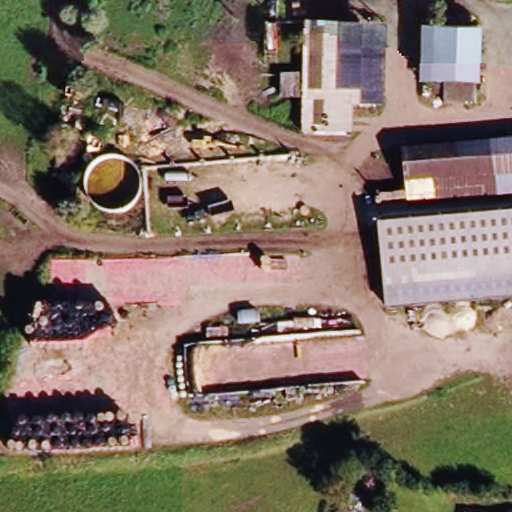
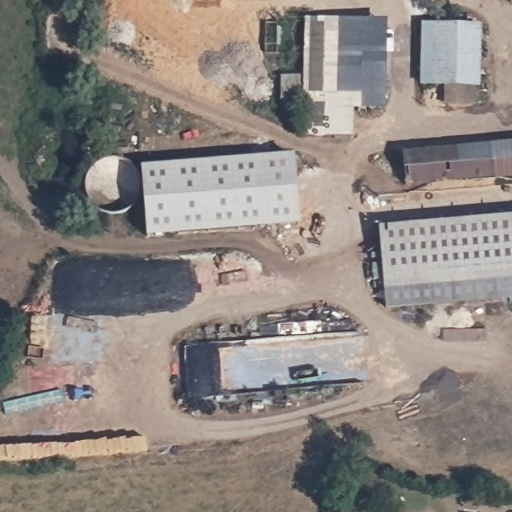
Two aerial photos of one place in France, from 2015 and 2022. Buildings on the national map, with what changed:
unchanged [(333,18),(333,90),(355,92),(353,114),(352,135),(306,135),(306,19),(333,18)]
unchanged [(355,92),(333,90),(333,18),(390,23),(384,115),(353,114),(355,92)]
unchanged [(483,31),(476,90),(435,87),(441,27),(483,31)]
unchanged [(504,197),(500,149),(512,148),(512,197),(504,197)]
unchanged [(504,197),(405,205),(401,156),(500,149),(504,197)]
new [(296,155),(301,225),(147,236),(140,167),(296,155)]
unchanged [(382,287),(378,224),(512,214),(512,276),(382,287)]
unchanged [(387,286),(512,276),(512,298),(388,308),(387,286)]

